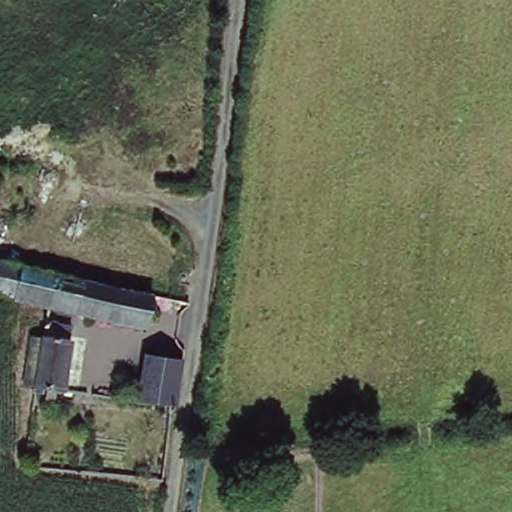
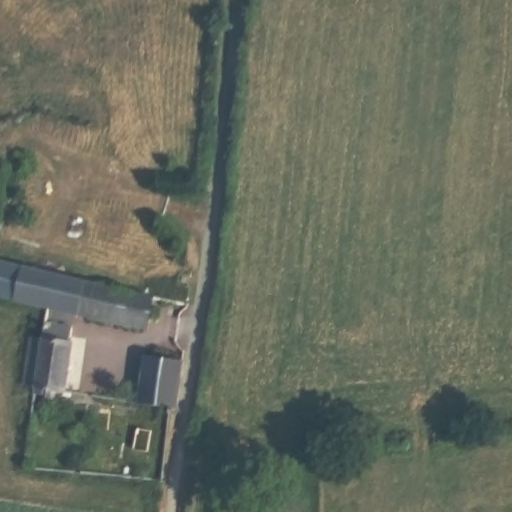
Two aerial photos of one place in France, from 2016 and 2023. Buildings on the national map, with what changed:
unchanged [(80,279),(75,313),(44,307),(0,298),(0,264),(50,274),(80,279)]
unchanged [(93,317),(75,313),(80,279),(116,287),(109,320),(93,317)]
unchanged [(145,327),(109,320),(116,287),(152,293),(145,327)]
unchanged [(49,404),(51,392),(44,391),(43,402),(34,401),(35,390),(24,387),(34,335),(42,337),(46,338),(49,322),(78,327),(67,394),(59,394),(56,404),(49,404)]
unchanged [(173,411),(160,410),(157,403),(140,402),(148,355),(181,357),(173,411)]

